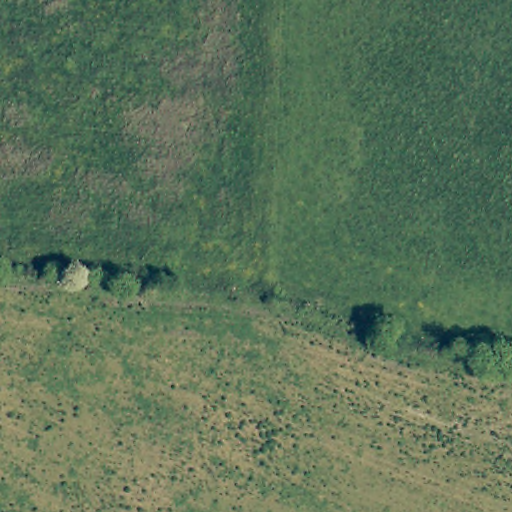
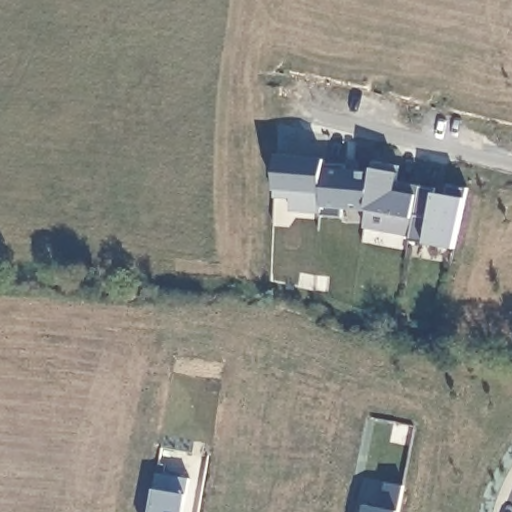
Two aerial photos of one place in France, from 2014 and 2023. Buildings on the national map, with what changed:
new [(322,166),(371,172),(372,166),(400,170),(398,179),(436,187),(436,192),(448,194),(449,183),(468,187),(466,196),(456,248),(425,242),(366,230),(366,210),(346,209),(345,216),(291,213),(292,198),(273,198),(272,189),(275,153),(325,158),(322,166)]
new [(154,488),(157,472),(189,477),(186,494),(183,512),(150,512),(154,488)]
new [(363,504),(379,508),(383,481),(402,486),(397,512),(362,512),(363,504)]

